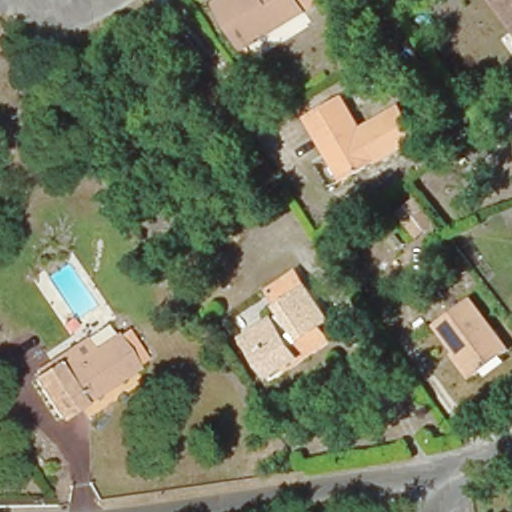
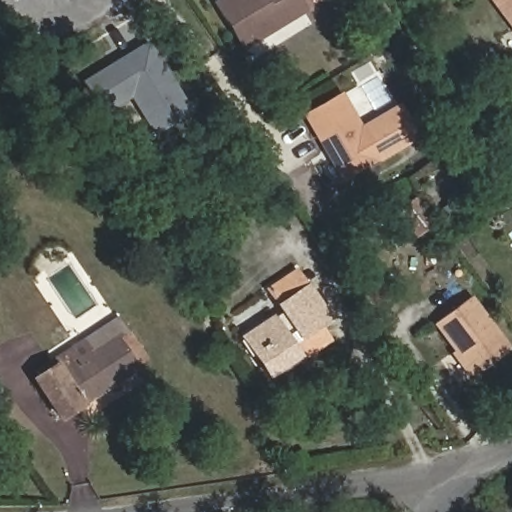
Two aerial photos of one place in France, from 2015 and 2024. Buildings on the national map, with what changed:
unchanged [(212,3),(217,0),(314,0),(239,47),(212,3)]
unchanged [(512,0),(512,26),(491,0),(512,0)]
new [(148,41),(192,112),(154,135),(131,97),(104,114),(84,81),(148,41)]
unchanged [(344,180),(305,121),(344,97),(363,127),(378,160),(344,180)]
unchanged [(363,127),(401,106),(420,137),(378,160),(363,127)]
unchanged [(415,239),(395,211),(416,196),(438,222),(415,239)]
unchanged [(304,361),(277,377),(261,353),(250,337),(263,328),(286,313),(272,292),(292,279),(300,273),(309,287),(331,321),(322,327),(333,344),(304,361)]
unchanged [(447,318),(470,302),(510,357),(486,374),(477,381),(437,326),(447,318)]
unchanged [(127,327),(152,363),(135,376),(117,348),(95,363),(88,353),(127,327)]
unchanged [(76,416),(44,370),(79,347),(82,346),(88,353),(95,363),(117,348),(135,376),(76,416)]

